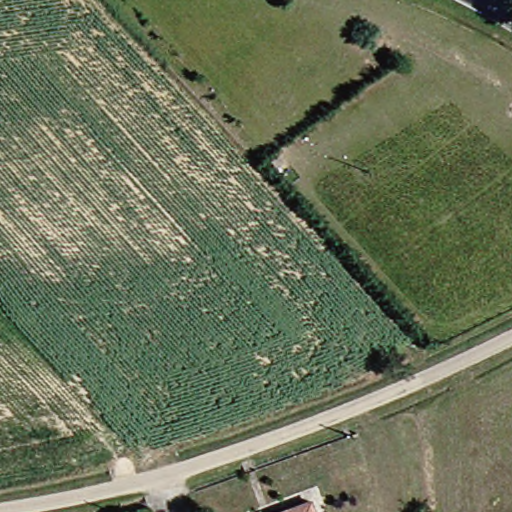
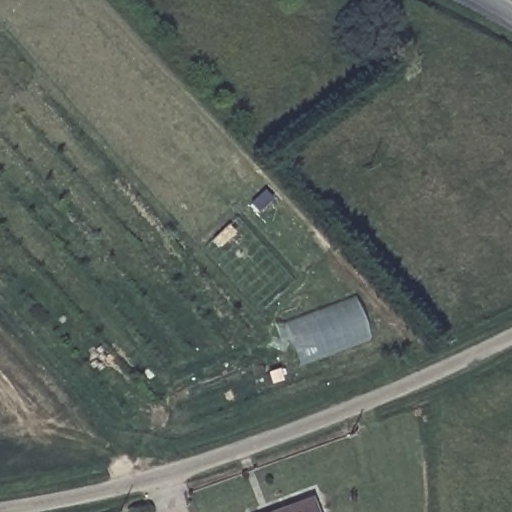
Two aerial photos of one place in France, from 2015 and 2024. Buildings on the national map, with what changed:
new [(372,339),(301,365),(285,322),(355,295),(372,339)]
unchanged [(298,498),(304,512),(259,512),(298,498)]

